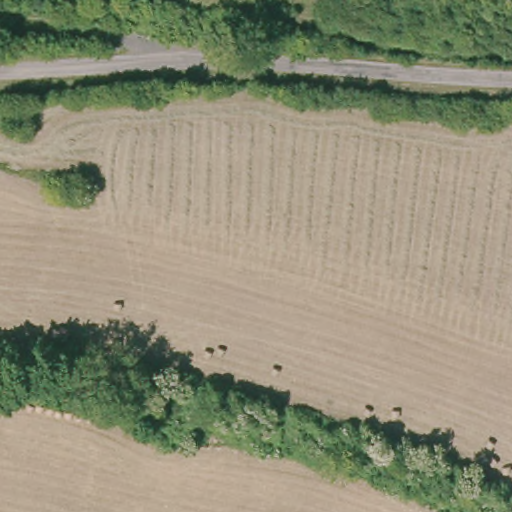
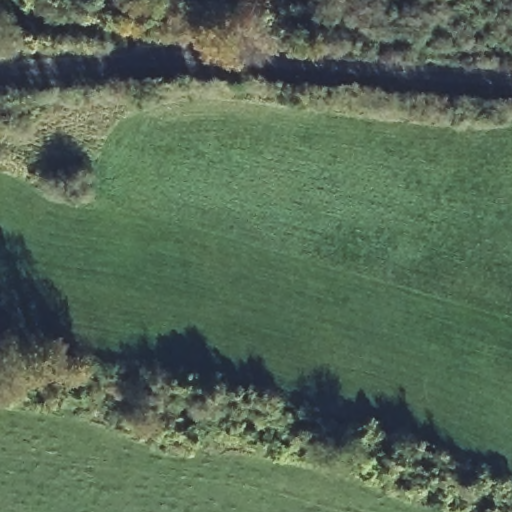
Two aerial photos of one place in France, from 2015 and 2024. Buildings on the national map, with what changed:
[]

